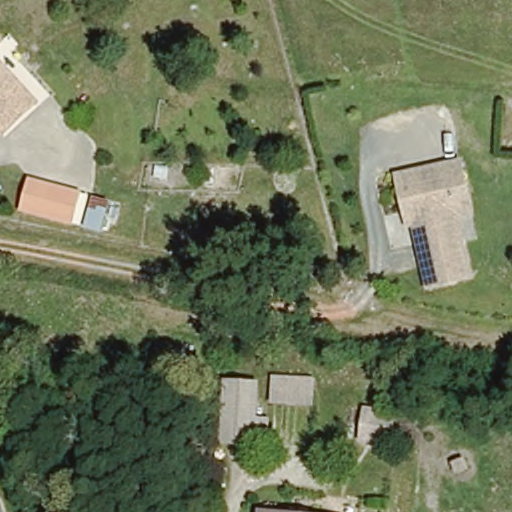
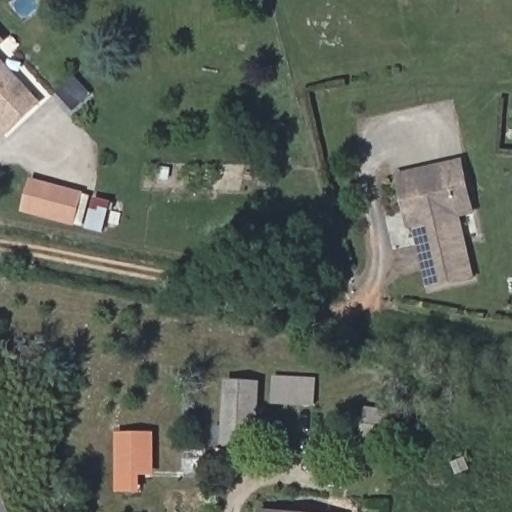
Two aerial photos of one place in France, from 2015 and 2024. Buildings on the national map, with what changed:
unchanged [(10,42),(0,52),(0,31),(10,42)]
unchanged [(8,136),(0,127),(0,55),(45,101),(8,136)]
unchanged [(466,161),(472,191),(476,211),(462,214),(475,277),(432,286),(419,224),(413,225),(410,212),(402,174),(466,161)]
unchanged [(107,234),(23,212),(32,178),(114,199),(107,234)]
unchanged [(316,381),(316,405),(274,405),(274,380),(316,381)]
unchanged [(259,386),(257,423),(270,423),(269,448),(225,446),(228,385),(259,386)]
unchanged [(392,416),(391,443),(364,442),(365,414),(392,416)]
new [(117,434),(156,433),(156,477),(142,478),(142,494),(117,494),(117,434)]
unchanged [(293,512),(261,512),(262,511),(293,512)]

